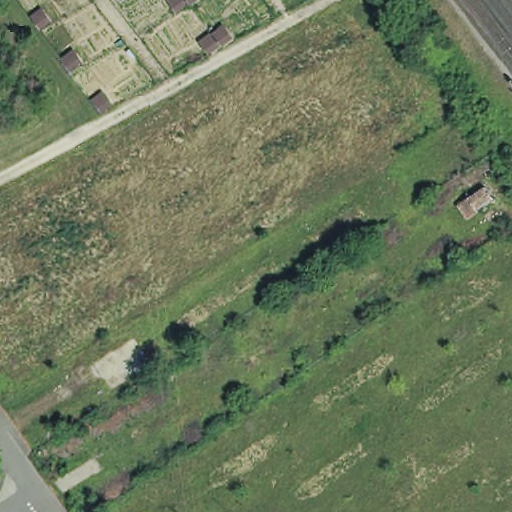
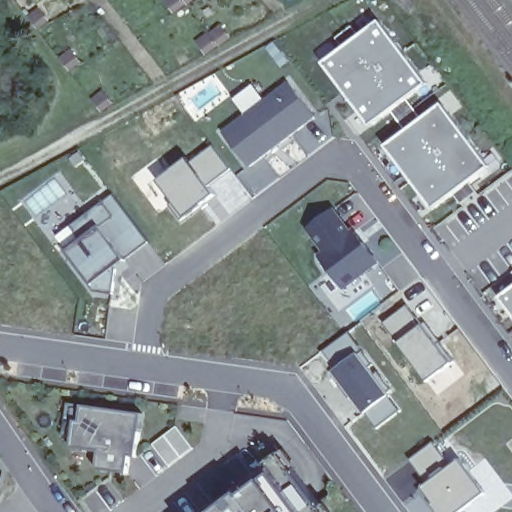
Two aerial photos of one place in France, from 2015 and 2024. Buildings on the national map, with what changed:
new [(420,87),(363,129),(318,66),(373,22),(420,87)]
new [(249,167),(222,133),(287,82),(315,117),(249,167)]
new [(485,169),(428,212),(382,148),(437,106),(485,169)]
new [(186,159),(190,163),(213,146),(231,170),(207,187),(213,196),(185,217),(158,180),(186,159)]
demolished [(470,226),(451,196),(475,177),(497,207),(470,226)]
new [(128,260),(131,264),(114,277),(112,294),(98,293),(92,285),(65,251),(80,239),(70,226),(113,195),(149,242),(128,260)]
new [(345,292),(317,258),(322,254),(305,232),(332,209),(378,265),(345,292)]
demolished [(356,317),(345,297),(367,286),(378,304),(356,317)]
new [(497,301),(512,288),(512,322),(497,301)]
new [(406,306),(422,325),(451,364),(425,382),(396,341),(383,322),(406,306)]
new [(381,397),(360,415),(330,373),(354,357),(381,397)]
new [(138,459),(132,458),(130,476),(98,471),(100,453),(72,450),(76,422),(81,422),(83,406),(145,415),(138,459)]
new [(178,427),(195,451),(170,468),(151,446),(178,427)]
new [(435,442),(451,465),(461,461),(485,494),(462,512),(436,512),(419,490),(425,485),(410,461),(435,442)]
new [(268,462),(276,472),(291,461),(329,512),(202,512),(268,462)]

